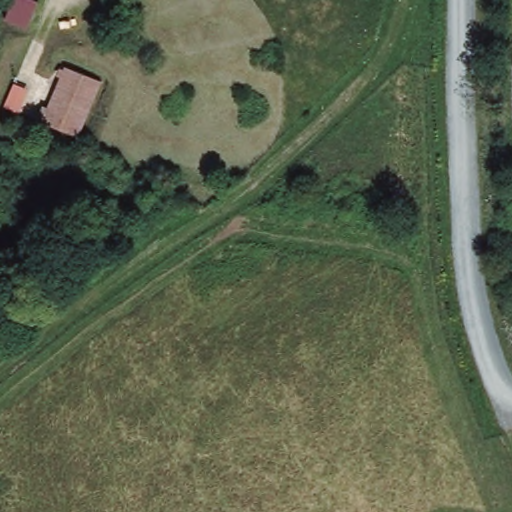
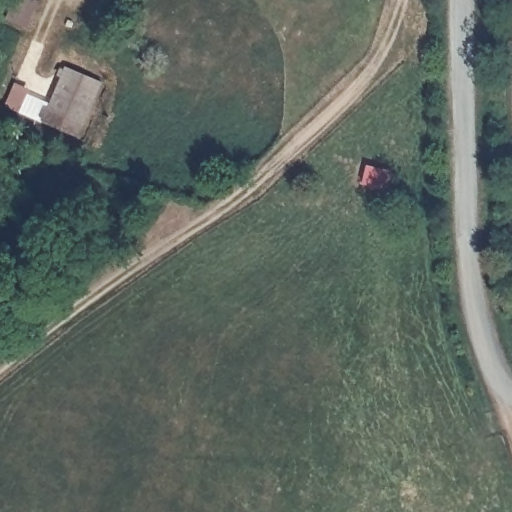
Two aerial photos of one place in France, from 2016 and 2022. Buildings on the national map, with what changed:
unchanged [(61,64),(106,83),(81,138),(40,123),(61,64)]

